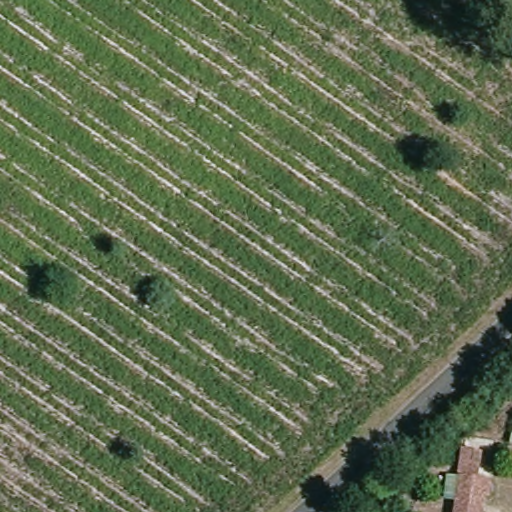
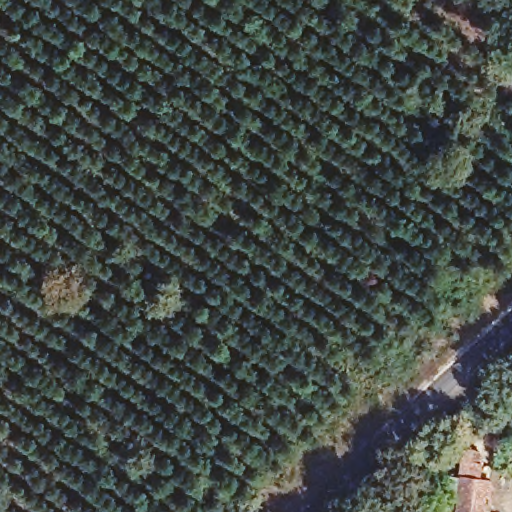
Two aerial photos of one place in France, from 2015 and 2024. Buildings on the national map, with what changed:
unchanged [(478,451),(478,464),(483,464),(482,483),(494,483),(488,512),(458,512),(467,450),(478,451)]

